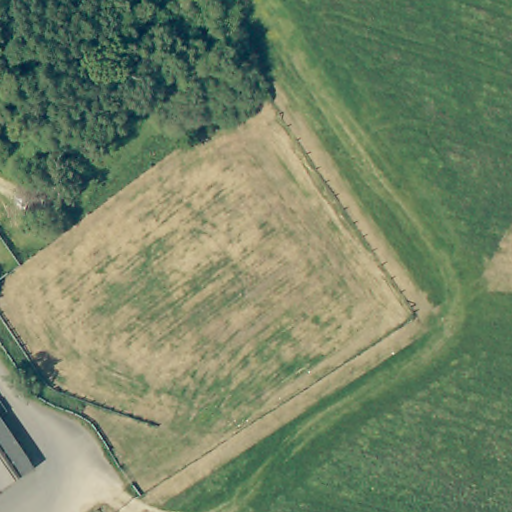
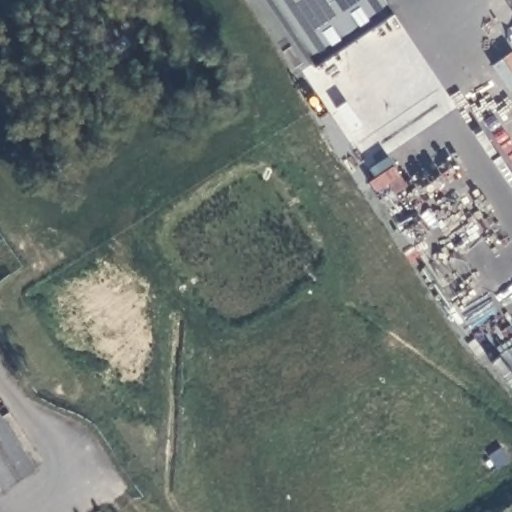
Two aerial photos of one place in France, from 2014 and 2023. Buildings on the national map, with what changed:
new [(390,12),(311,62),(269,0),(382,0),(390,12)]
unchanged [(3,491),(0,487),(0,419),(35,469),(3,491)]

